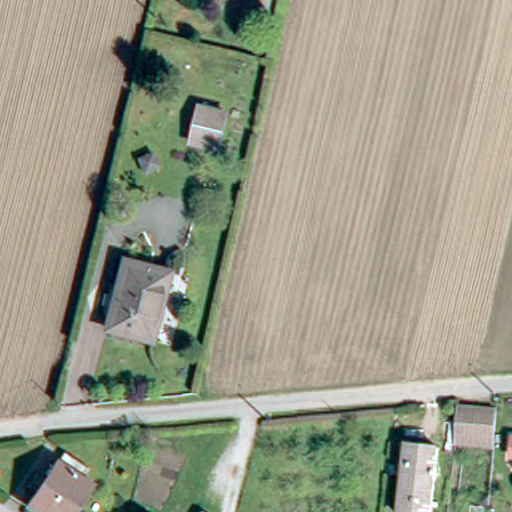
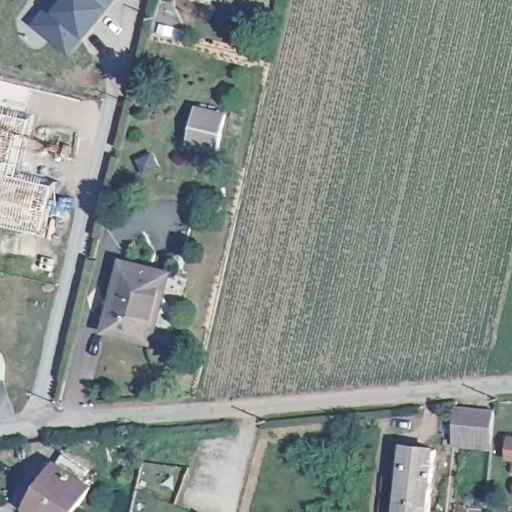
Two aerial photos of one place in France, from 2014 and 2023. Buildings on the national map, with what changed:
new [(51,0),(112,0),(110,2),(113,4),(87,37),(85,35),(70,55),(32,22),(51,0)]
unchanged [(225,113),(217,149),(191,142),(199,107),(225,113)]
new [(25,132),(22,132),(12,173),(54,183),(42,234),(0,224),(0,108),(30,116),(25,132)]
unchanged [(165,271),(146,338),(103,326),(120,260),(165,271)]
unchanged [(457,438),(460,407),(496,411),(495,413),(492,441),(457,438)]
unchanged [(442,447),(432,512),(399,512),(408,444),(442,447)]
unchanged [(39,473),(48,478),(65,450),(92,465),(84,478),(93,484),(77,512),(45,512),(32,504),(40,492),(31,486),(39,473)]
unchanged [(485,496),(486,483),(493,485),(492,497),(485,496)]

